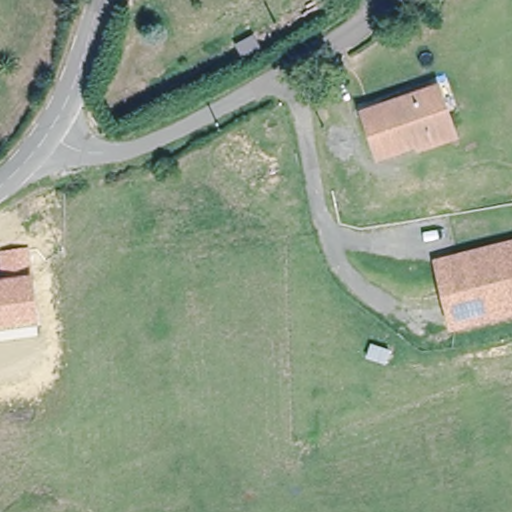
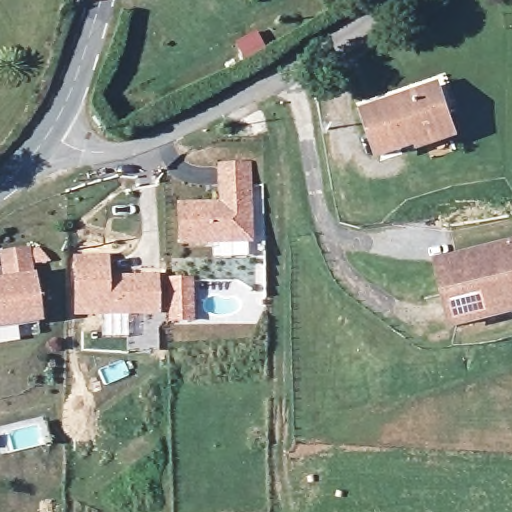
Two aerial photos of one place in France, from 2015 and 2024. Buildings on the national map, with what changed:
unchanged [(446,130),(378,152),(363,111),(433,91),(446,130)]
new [(218,201),(217,162),(251,162),(252,244),(179,246),(179,202),(218,201)]
unchanged [(443,266),(441,258),(500,246),(512,244),(512,312),(455,323),(443,266)]
unchanged [(0,274),(0,249),(29,246),(41,323),(0,329),(0,279),(0,278),(0,274)]
new [(109,254),(110,275),(159,275),(160,315),(74,317),(72,255),(109,254)]
new [(172,279),(193,279),(194,291),(194,321),(172,321),(172,291),(172,279)]
new [(156,351),(145,351),(129,350),(130,332),(136,332),(157,334),(156,351)]

